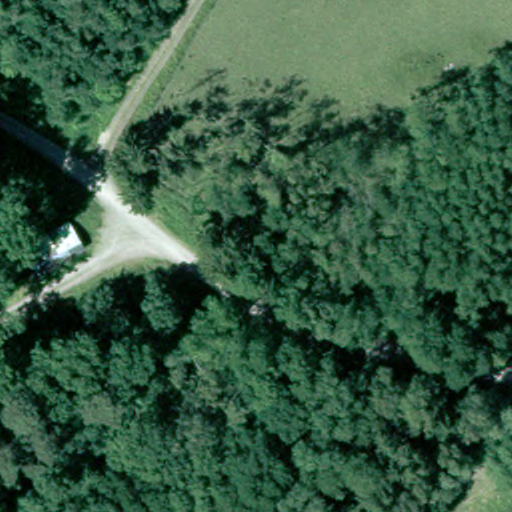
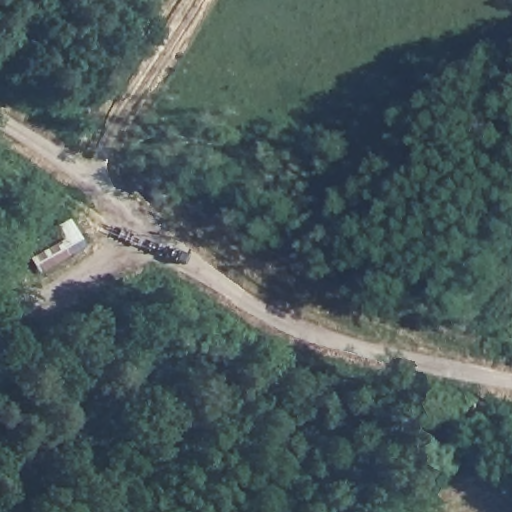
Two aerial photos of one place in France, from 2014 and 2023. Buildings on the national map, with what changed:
unchanged [(65,217),(82,241),(43,262),(27,239),(65,217)]

